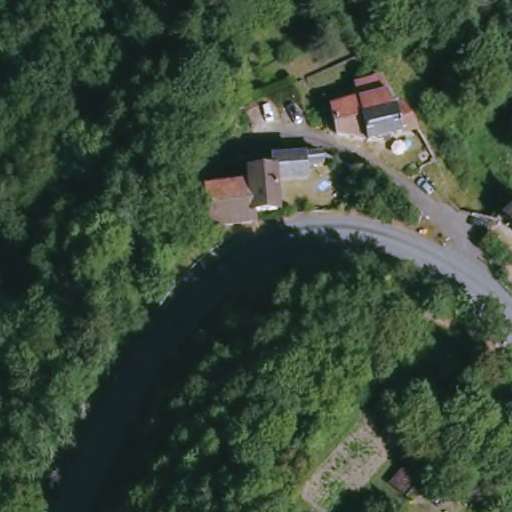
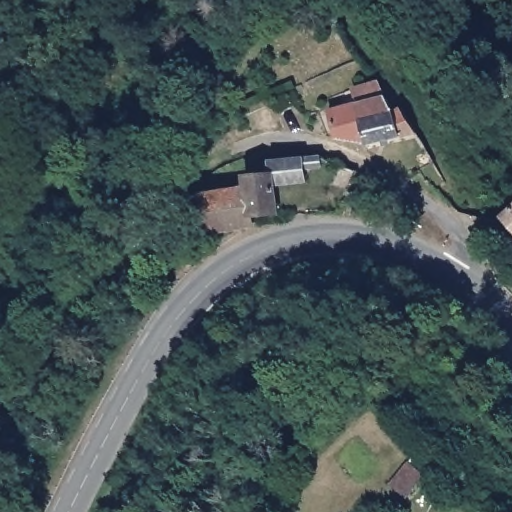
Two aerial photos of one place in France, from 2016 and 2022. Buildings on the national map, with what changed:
unchanged [(408,134),(364,149),(340,143),(330,115),(355,105),(350,90),(376,81),(408,134)]
unchanged [(319,180),(276,190),(277,210),(251,216),(252,225),(205,232),(200,192),(245,183),(244,173),(270,168),(269,157),(317,148),(319,180)]
unchanged [(512,224),(504,213),(512,206),(512,224)]
unchanged [(410,462),(430,476),(409,502),(387,485),(410,462)]

